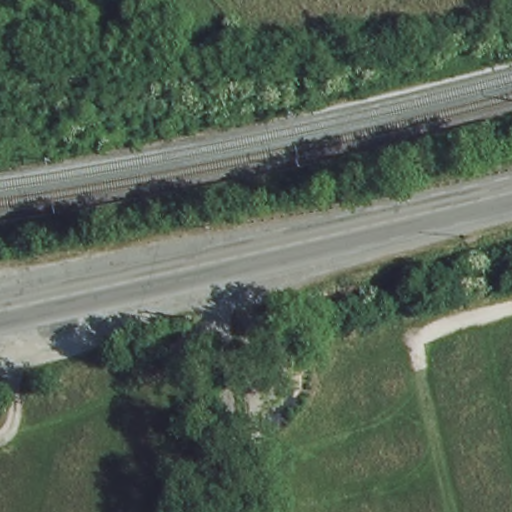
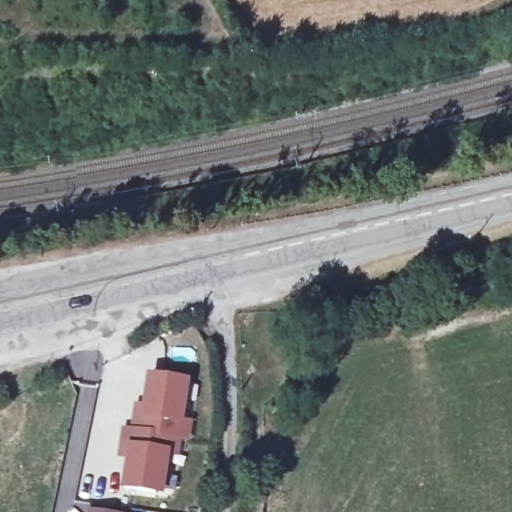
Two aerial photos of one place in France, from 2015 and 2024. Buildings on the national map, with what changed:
new [(126,444),(128,445),(131,416),(138,418),(145,374),(190,381),(183,421),(193,421),(189,444),(182,444),(180,457),(169,457),(163,497),(119,490),(126,444)]
new [(84,512),(84,510),(101,512),(84,512)]

